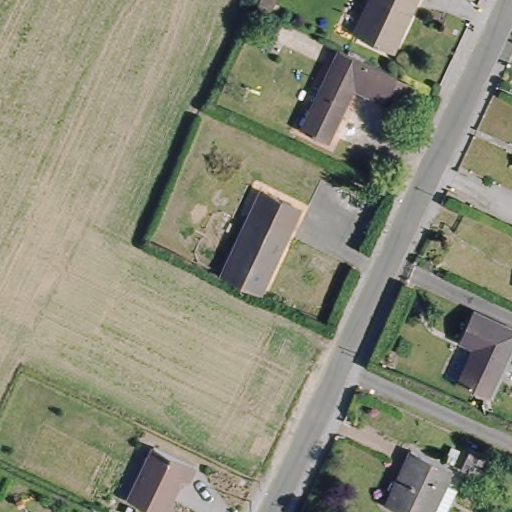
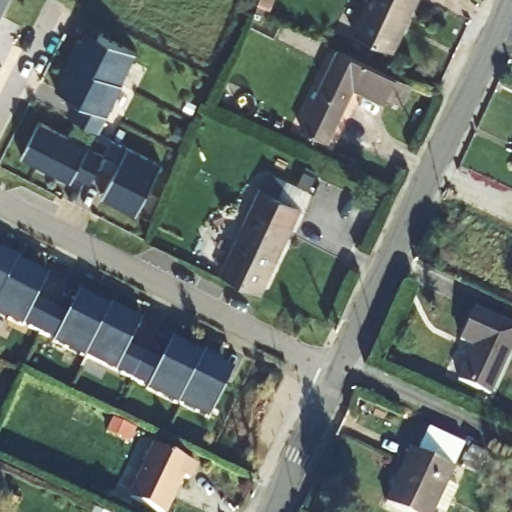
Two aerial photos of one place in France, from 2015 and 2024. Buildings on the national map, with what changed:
new [(0,17),(0,0),(8,0),(0,17)]
unchanged [(353,37),(372,0),(415,0),(390,53),(353,37)]
new [(92,45),(98,33),(137,52),(98,132),(72,118),(82,101),(55,89),(79,38),(92,45)]
unchanged [(346,48),(344,54),(393,76),(382,101),(348,86),(325,139),(298,127),(337,44),(346,48)]
new [(105,152),(112,138),(162,163),(138,215),(102,197),(115,172),(100,164),(90,182),(74,175),(70,181),(20,156),(39,121),(105,152)]
unchanged [(298,205),(261,289),(223,271),(260,188),(298,205)]
new [(51,265),(34,299),(65,314),(78,291),(107,306),(108,304),(140,319),(127,345),(143,353),(132,378),(0,316),(0,242),(51,265)]
unchanged [(462,339),(477,310),(512,327),(512,353),(492,395),(460,379),(476,346),(462,339)]
new [(132,378),(143,353),(160,362),(172,338),(222,361),(215,375),(228,381),(210,419),(132,378)]
unchanged [(188,479),(182,474),(164,512),(157,512),(128,499),(155,444),(195,464),(188,479)]
unchanged [(392,512),(381,507),(407,453),(446,472),(440,485),(452,491),(443,512),(392,512)]

